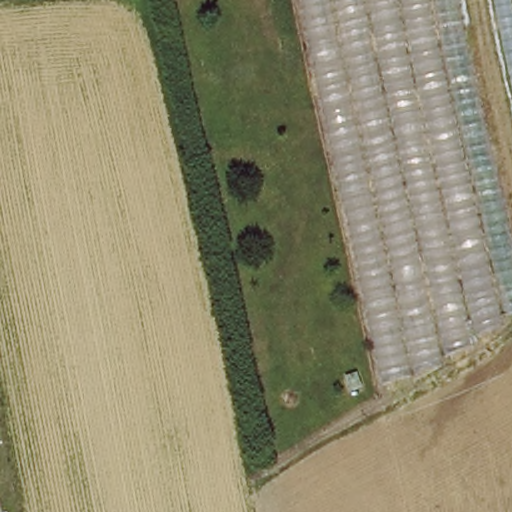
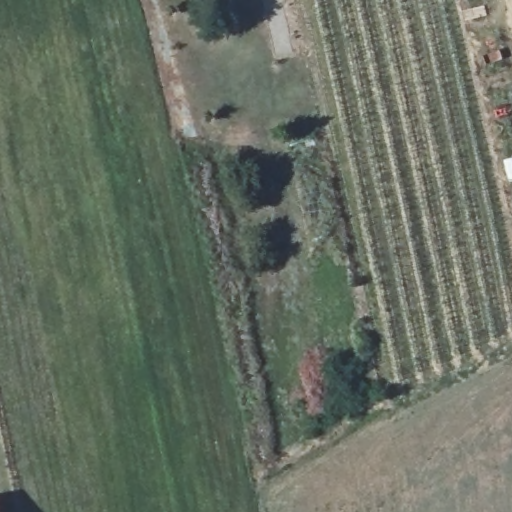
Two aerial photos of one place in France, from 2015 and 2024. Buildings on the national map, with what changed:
demolished [(454,369),(380,394),(301,0),(468,0),(512,210),(512,328),(454,369)]

